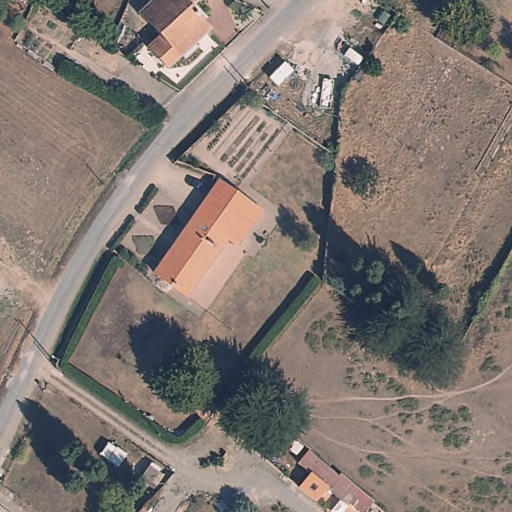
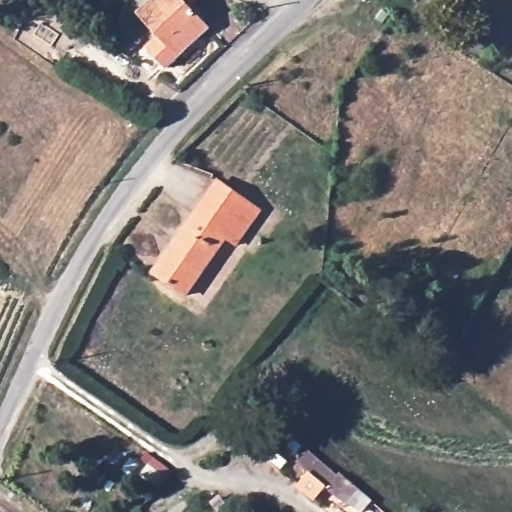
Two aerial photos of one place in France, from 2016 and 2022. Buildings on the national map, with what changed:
unchanged [(213,30),(171,69),(152,47),(164,37),(143,13),(158,0),(203,0),(194,9),(213,30)]
unchanged [(236,247),(226,240),(186,297),(154,273),(218,182),(260,212),(236,247)]
unchanged [(299,464),(310,451),(349,485),(338,497),(299,464)]

